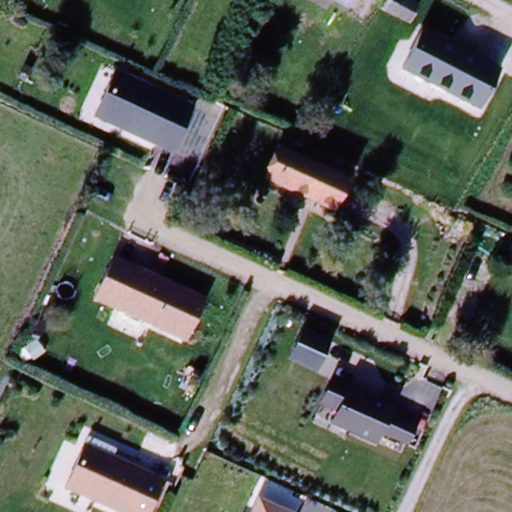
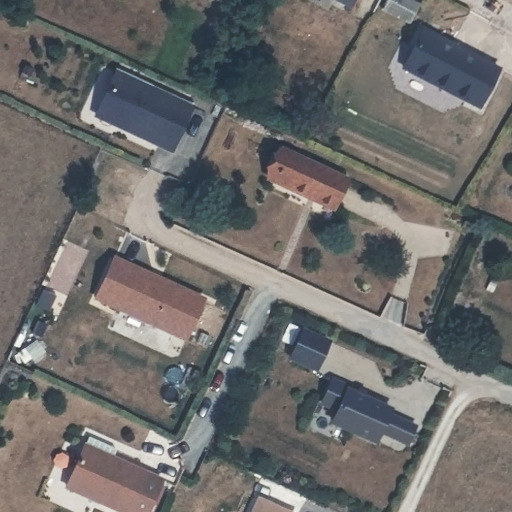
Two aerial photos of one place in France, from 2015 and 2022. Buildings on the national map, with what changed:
unchanged [(347,13),(323,0),(334,0),(350,8),(347,13)]
unchanged [(350,2),(346,0),(351,0),(350,2)]
unchanged [(417,4),(408,23),(383,10),(388,0),(409,0),(417,4)]
unchanged [(401,69),(423,29),(499,68),(479,108),(401,69)]
unchanged [(197,111),(176,156),(100,121),(120,76),(197,111)]
unchanged [(271,180),(284,149),(347,178),(333,207),(271,180)]
unchanged [(184,340),(95,299),(112,263),(115,258),(158,278),(203,299),(184,340)]
unchanged [(410,439),(401,435),(382,428),(378,438),(335,422),(339,409),(323,403),(332,379),(349,386),(348,388),(390,404),(388,408),(408,416),(417,420),(410,439)]
unchanged [(111,458),(161,480),(147,512),(119,512),(65,488),(88,437),(116,449),(111,458)]
unchanged [(250,512),(257,496),(287,512),(250,512)]

